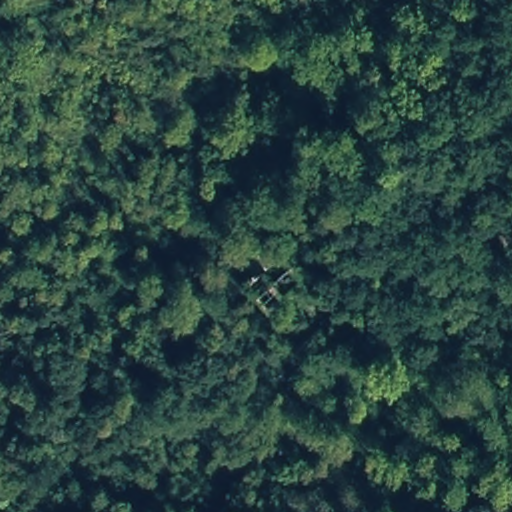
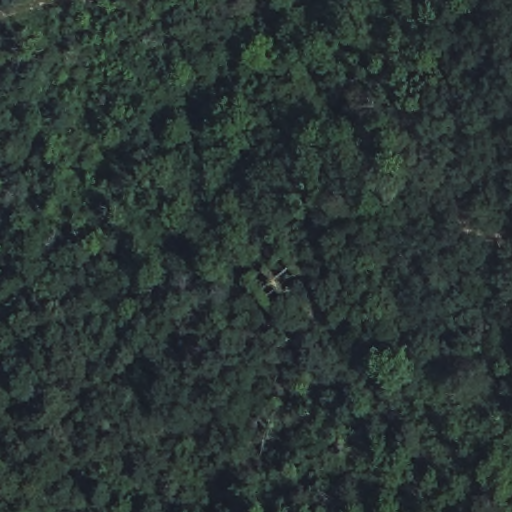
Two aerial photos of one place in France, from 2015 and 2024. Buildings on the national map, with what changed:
[]

